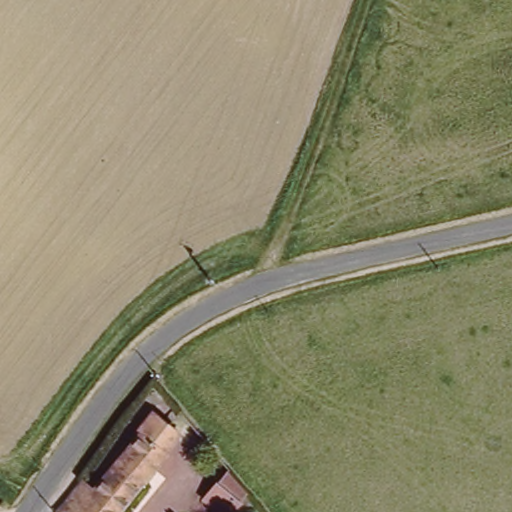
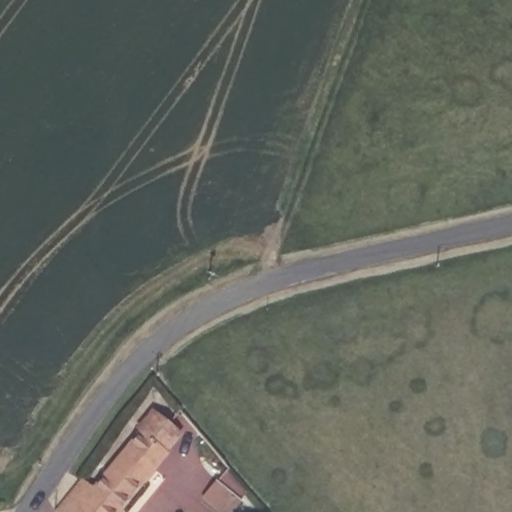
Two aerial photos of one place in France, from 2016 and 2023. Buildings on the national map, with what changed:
unchanged [(97,487),(143,428),(139,426),(152,409),(180,432),(165,450),(169,452),(120,512),(66,512),(87,481),(97,487)]
unchanged [(223,512),(213,512),(196,499),(209,482),(232,500),(223,512)]

